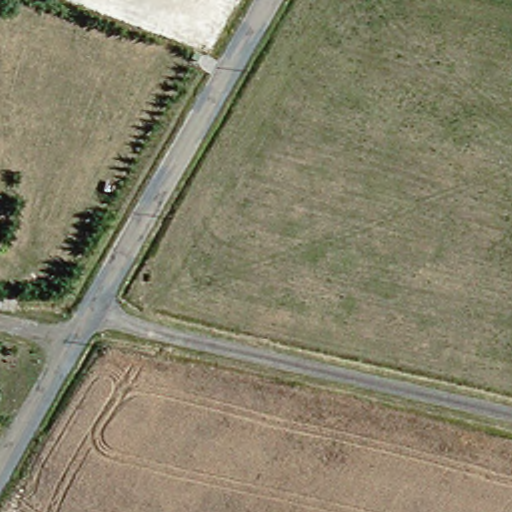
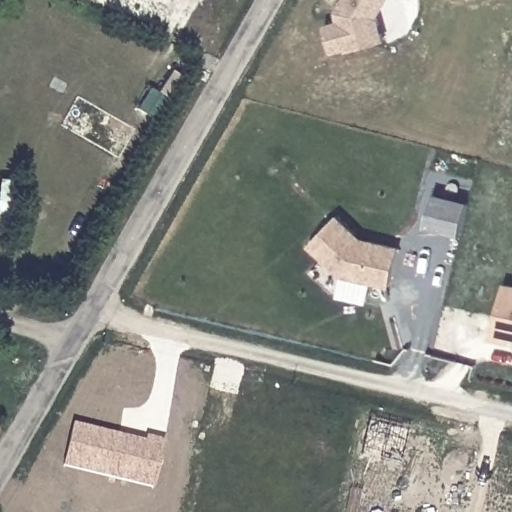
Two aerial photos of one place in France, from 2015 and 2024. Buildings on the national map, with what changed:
new [(385,0),(374,19),(381,42),(344,52),(344,50),(330,54),(323,27),(337,23),(336,18),(335,14),(339,6),(342,0),(385,0)]
new [(183,55),(189,58),(187,65),(180,62),(183,55)]
new [(334,216),(359,240),(396,250),(387,286),(339,274),(308,244),(334,216)]
new [(512,287),(512,343),(495,340),(505,285),(512,287)]
new [(72,423),(144,441),(145,436),(165,441),(155,488),(61,467),(72,423)]

